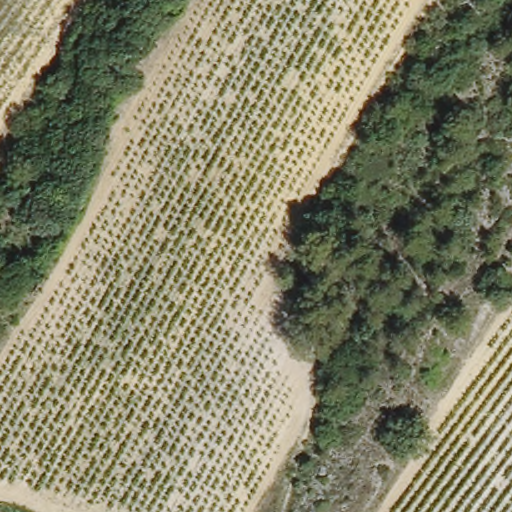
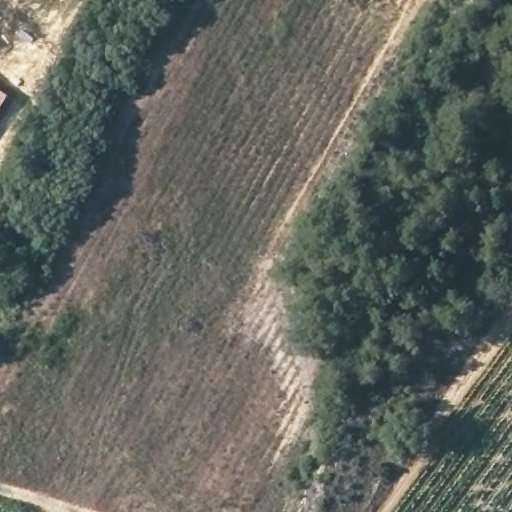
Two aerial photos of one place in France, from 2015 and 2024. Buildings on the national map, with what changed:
new [(0,109),(0,92),(8,97),(0,109)]

